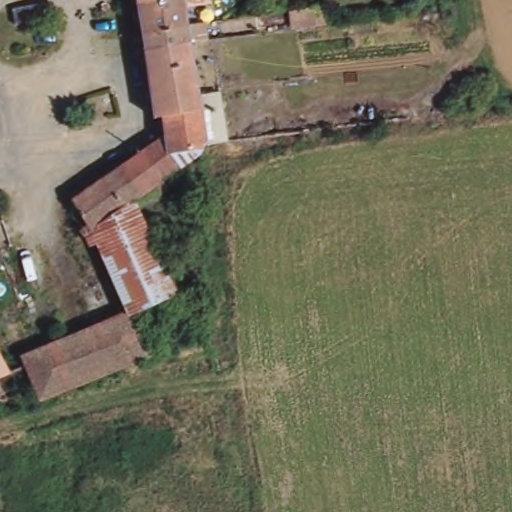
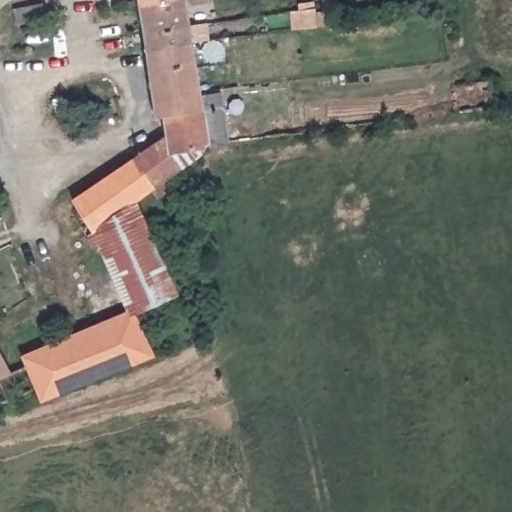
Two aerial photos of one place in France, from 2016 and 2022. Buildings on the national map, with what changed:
unchanged [(142,67),(139,45),(137,27),(134,0),(200,0),(200,1),(185,4),(189,22),(204,20),(207,36),(192,38),(195,60),(142,67)]
unchanged [(299,25),(297,7),(314,5),(314,6),(315,23),(299,25)]
unchanged [(142,67),(195,60),(201,92),(146,102),(142,67)]
unchanged [(209,136),(200,137),(194,143),(199,156),(178,168),(166,132),(160,114),(150,116),(148,116),(146,102),(201,92),(220,89),(228,140),(213,142),(209,136)]
unchanged [(160,179),(166,189),(153,197),(148,187),(129,199),(175,286),(129,308),(71,198),(166,132),(178,168),(160,179)]
unchanged [(23,363),(20,356),(129,308),(155,352),(39,400),(34,387),(0,402),(0,353),(9,369),(23,363)]

